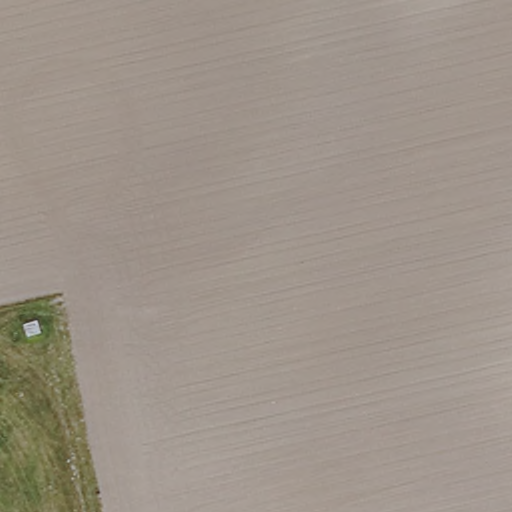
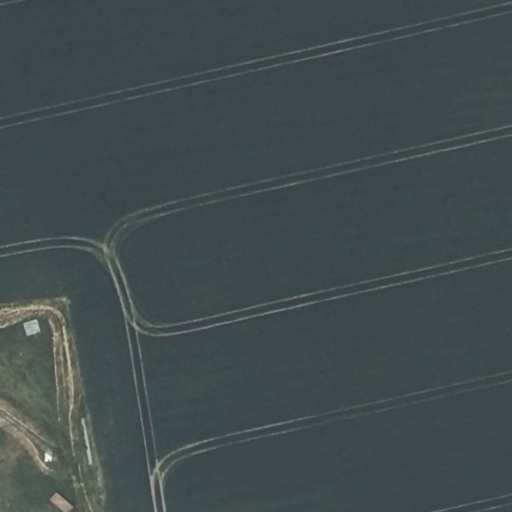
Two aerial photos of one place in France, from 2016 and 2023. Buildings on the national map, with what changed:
[]

